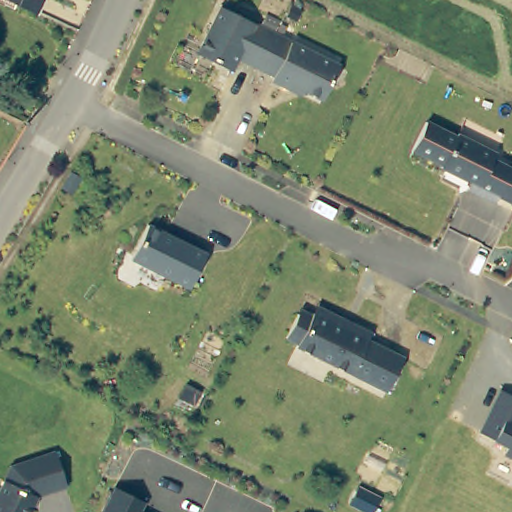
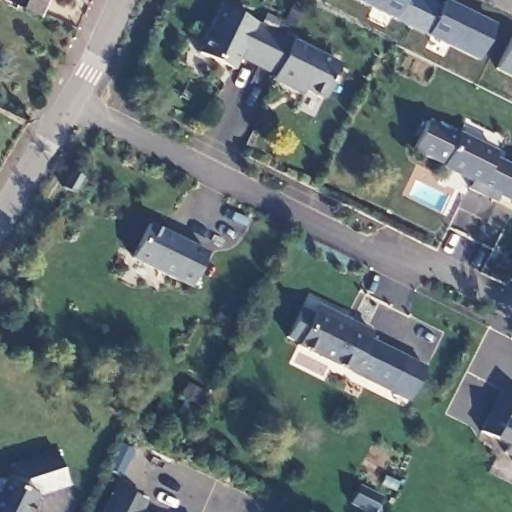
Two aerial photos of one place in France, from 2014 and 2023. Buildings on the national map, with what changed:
unchanged [(15,0),(41,0),(36,10),(15,0)]
new [(442,4),(492,27),(477,60),(357,0),(421,0),(440,9),(442,4)]
unchanged [(217,65),(192,51),(217,6),(242,20),(268,32),(252,65),(232,55),(228,64),(226,69),(217,65)]
unchanged [(252,65),(268,32),(334,65),(317,99),(287,83),(285,87),(267,78),(268,74),(252,65)]
new [(512,36),(512,78),(494,70),(511,36),(512,36)]
unchanged [(487,154),(505,164),(489,196),(462,183),(465,177),(436,162),(437,160),(408,145),(421,117),(450,132),(452,129),(491,148),(487,154)]
unchanged [(505,164),(510,167),(512,162),(512,201),(492,191),(505,164)]
unchanged [(69,192),(65,191),(75,174),(79,176),(80,177),(85,180),(75,196),(69,193),(69,192)]
unchanged [(204,252),(187,286),(130,256),(146,222),(204,252)]
unchanged [(295,307),(306,313),(310,307),(333,318),(337,312),(367,327),(364,333),(399,352),(382,386),(292,340),(294,337),(282,331),(295,307)]
unchanged [(512,396),(512,460),(500,454),(503,447),(492,441),(477,432),(500,390),(512,396)]
unchanged [(34,494),(24,512),(0,512),(0,477),(5,480),(15,461),(51,448),(63,484),(34,494)]
unchanged [(116,488),(147,503),(142,512),(104,512),(116,488)]

